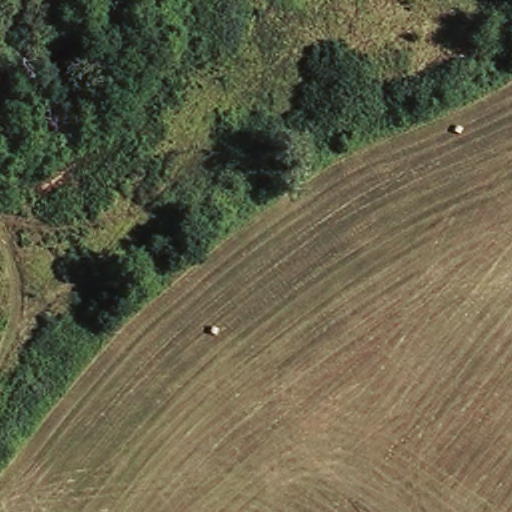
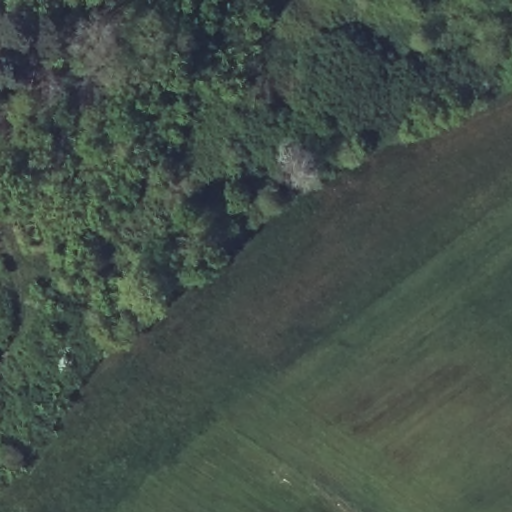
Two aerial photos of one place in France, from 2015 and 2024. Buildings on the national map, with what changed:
[]

